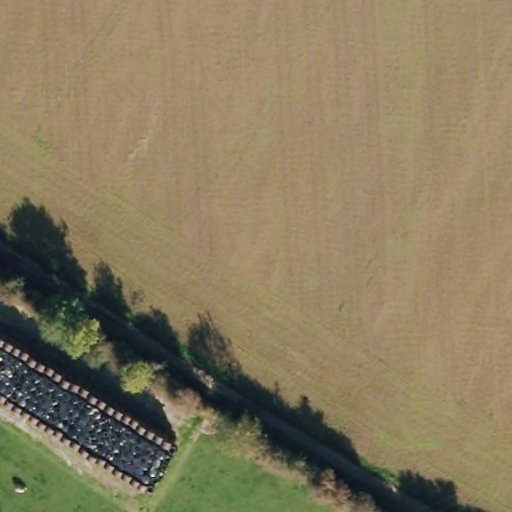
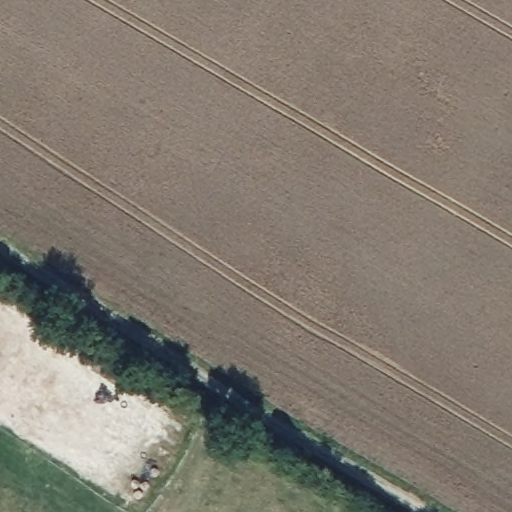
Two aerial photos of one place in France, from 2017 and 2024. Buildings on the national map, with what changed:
[]

